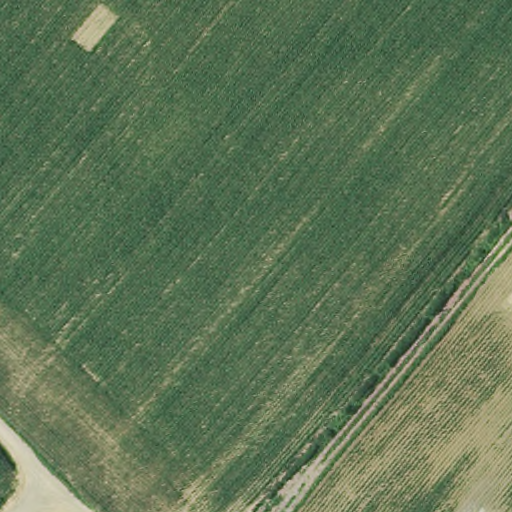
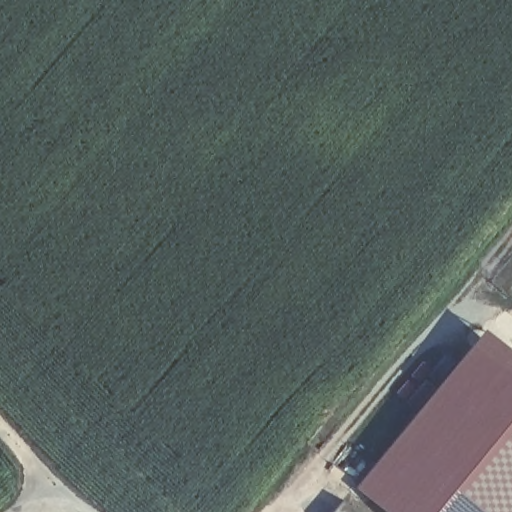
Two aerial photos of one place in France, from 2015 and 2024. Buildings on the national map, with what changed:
new [(351,487),(483,330),(512,353),(512,512),(383,512),(351,487)]

